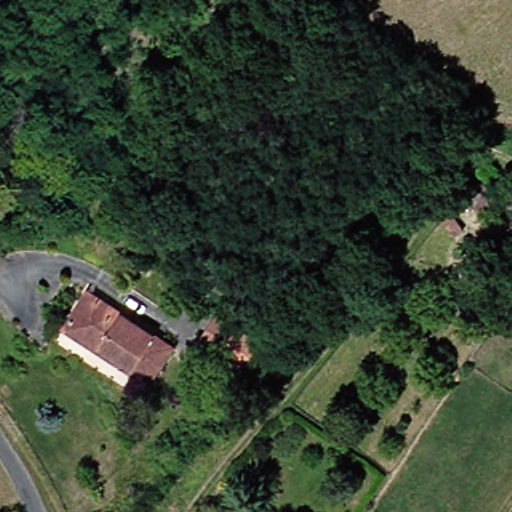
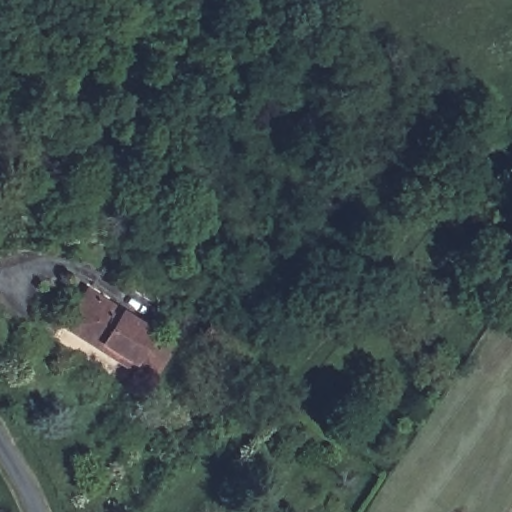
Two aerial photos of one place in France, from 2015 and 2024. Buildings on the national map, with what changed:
unchanged [(61,326),(90,290),(153,341),(171,355),(141,392),(124,378),(105,363),(61,326)]
unchanged [(195,338),(213,317),(252,349),(234,372),(195,338)]

